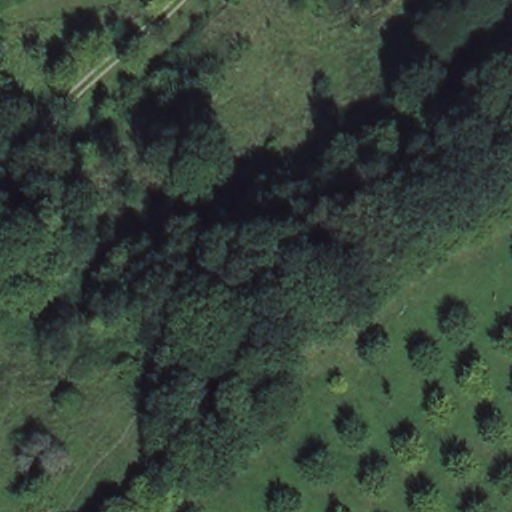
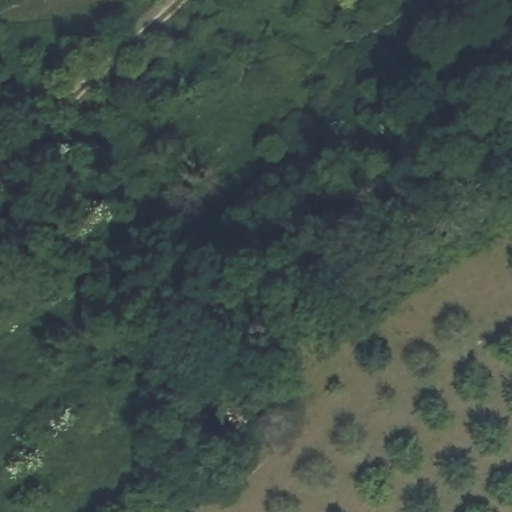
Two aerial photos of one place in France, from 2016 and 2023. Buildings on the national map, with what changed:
[]

